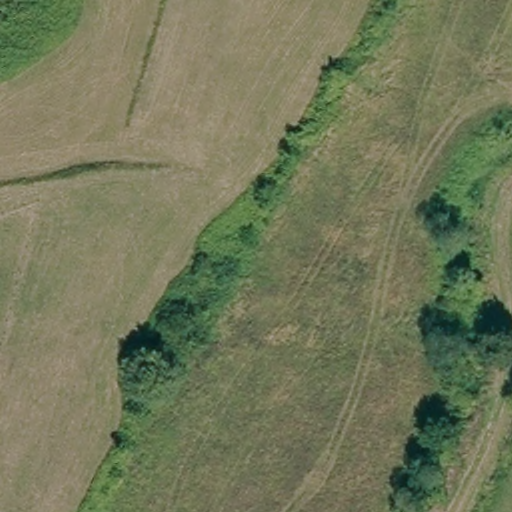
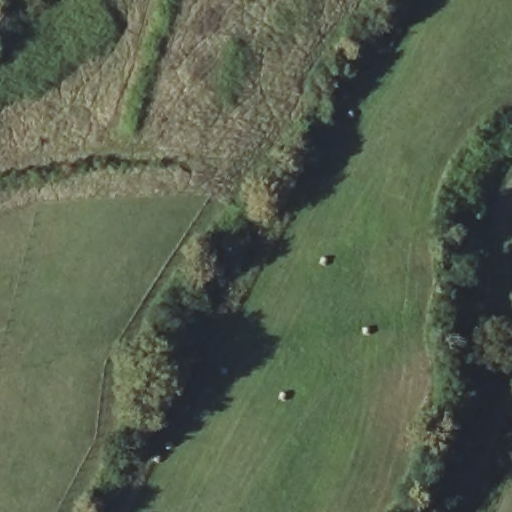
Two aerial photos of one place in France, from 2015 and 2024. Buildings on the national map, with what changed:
[]

